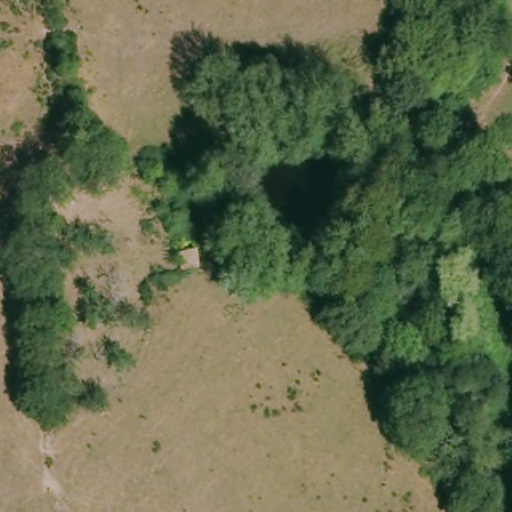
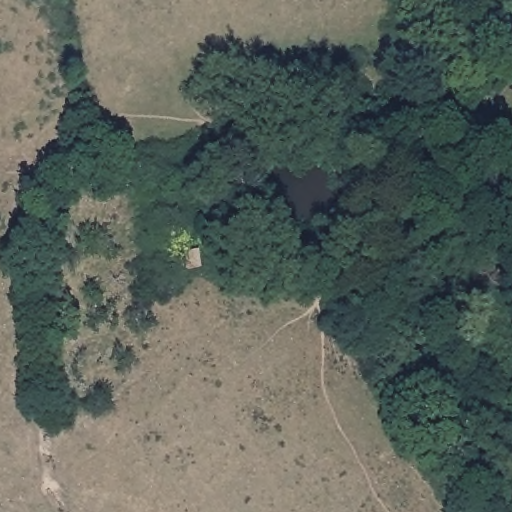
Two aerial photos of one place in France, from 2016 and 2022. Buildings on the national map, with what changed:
unchanged [(201,267),(183,269),(180,251),(199,250),(201,267)]

